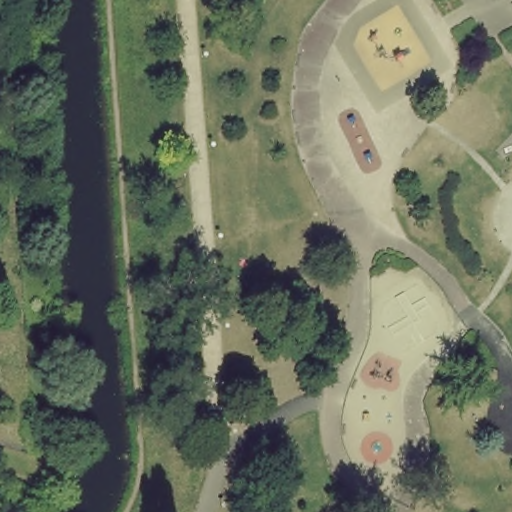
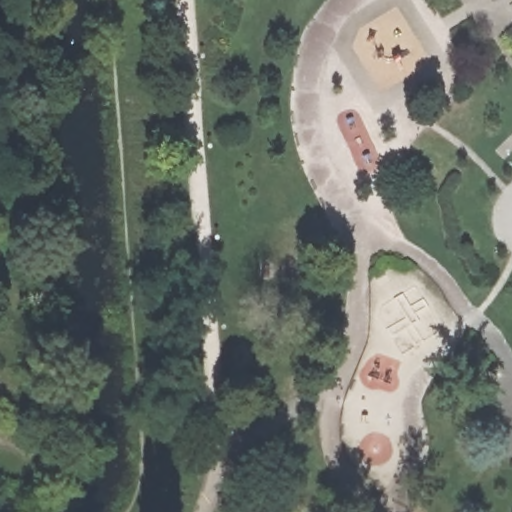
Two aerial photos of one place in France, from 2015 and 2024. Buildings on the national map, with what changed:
unchanged [(28,443),(0,437),(0,105),(27,431),(28,443)]

